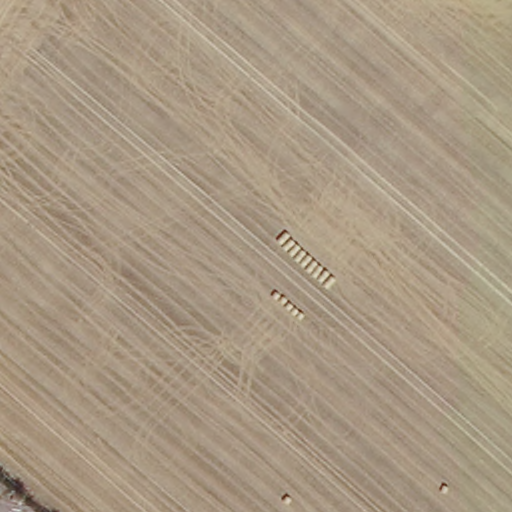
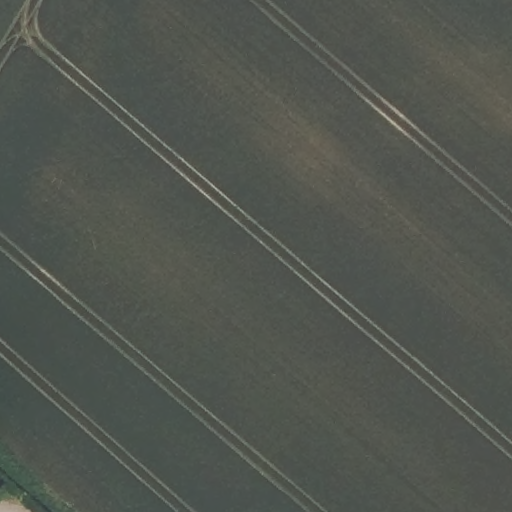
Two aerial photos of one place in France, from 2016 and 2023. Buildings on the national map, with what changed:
[]

